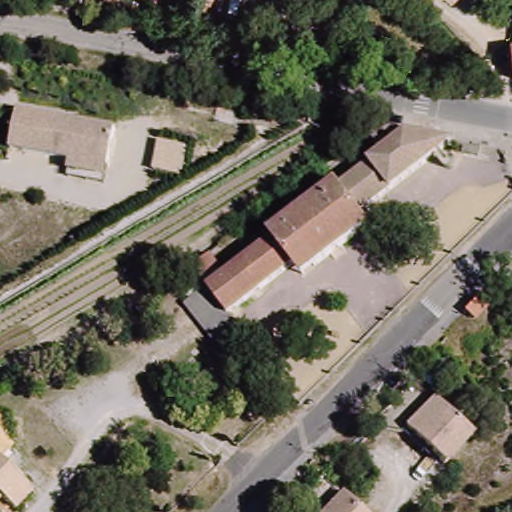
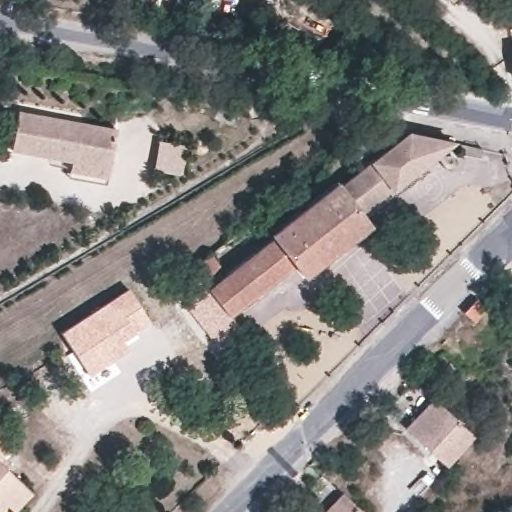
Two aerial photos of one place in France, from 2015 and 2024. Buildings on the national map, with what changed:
unchanged [(113,125),(107,177),(67,173),(68,158),(13,146),(17,108),(113,125)]
unchanged [(398,130),(380,149),(368,137),(381,126),(398,130)]
demolished [(481,141),(464,138),(466,127),(484,132),(481,141)]
unchanged [(450,143),(363,213),(374,227),(308,280),(296,268),(229,319),(211,294),(276,240),(272,235),(338,183),(345,188),(409,133),(450,143)]
unchanged [(159,142),(183,146),(178,175),(154,170),(159,142)]
unchanged [(186,312),(193,307),(181,288),(196,275),(216,258),(224,271),(204,286),(211,294),(229,319),(243,336),(219,356),(186,312)]
new [(128,288),(150,322),(121,341),(127,351),(88,376),(59,331),(128,288)]
unchanged [(251,327),(261,323),(268,335),(261,341),(251,327)]
unchanged [(403,425),(434,393),(476,432),(442,464),(403,425)]
unchanged [(0,457),(0,434),(11,445),(0,457)]
unchanged [(6,509),(0,503),(0,464),(24,490),(6,509)]
unchanged [(340,491),(360,512),(319,512),(340,491)]

